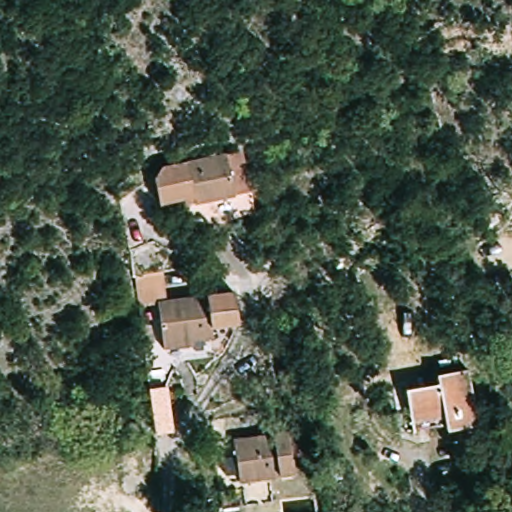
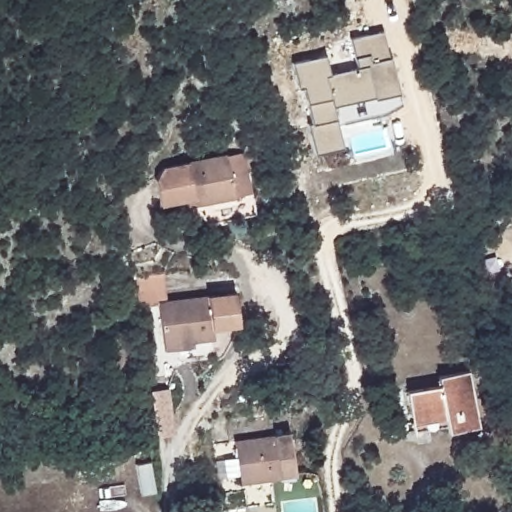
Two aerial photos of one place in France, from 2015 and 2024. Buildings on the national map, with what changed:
new [(357,66),(355,56),(350,39),(382,32),(387,57),(389,57),(398,92),(401,104),(381,114),(336,124),(341,145),(314,152),(307,124),(311,122),(306,103),(302,86),(297,87),(292,64),(325,55),(329,73),(357,66)]
unchanged [(243,191),(201,197),(200,190),(161,196),(157,166),(237,155),(243,191)]
unchanged [(170,349),(162,302),(222,293),(235,323),(211,330),(212,342),(170,349)]
unchanged [(466,355),(480,403),(472,407),(417,427),(411,411),(401,382),(434,375),(432,366),(459,357),(466,355)]
new [(162,373),(165,418),(148,420),(145,375),(162,373)]
unchanged [(290,436),(292,476),(246,482),(241,441),(290,436)]

